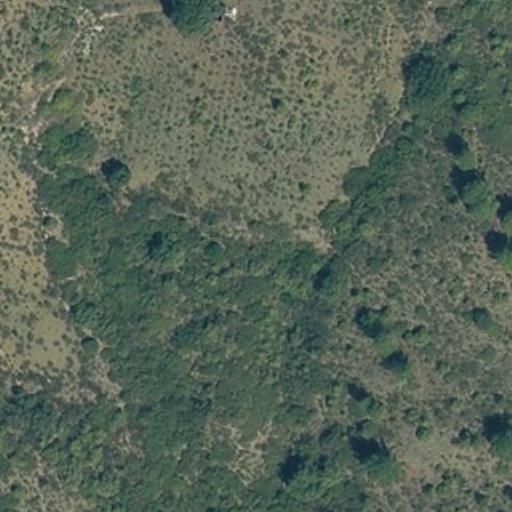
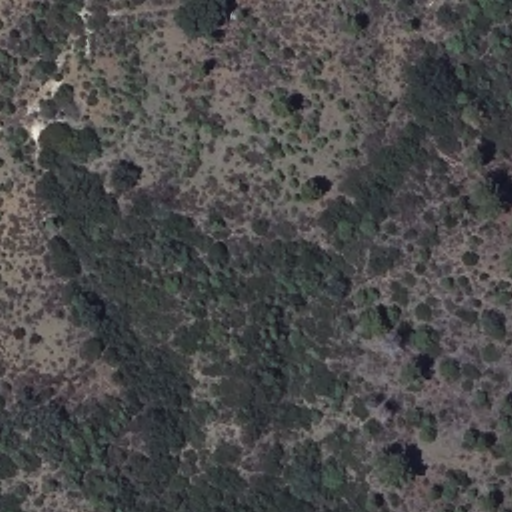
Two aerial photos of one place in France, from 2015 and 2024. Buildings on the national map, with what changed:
unchanged [(206,19),(209,1),(225,3),(224,19),(206,19)]

